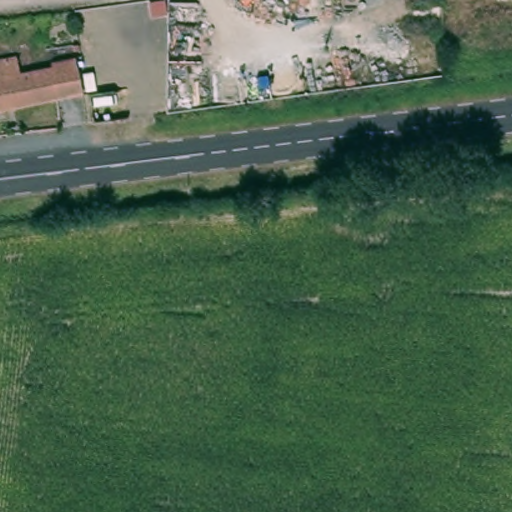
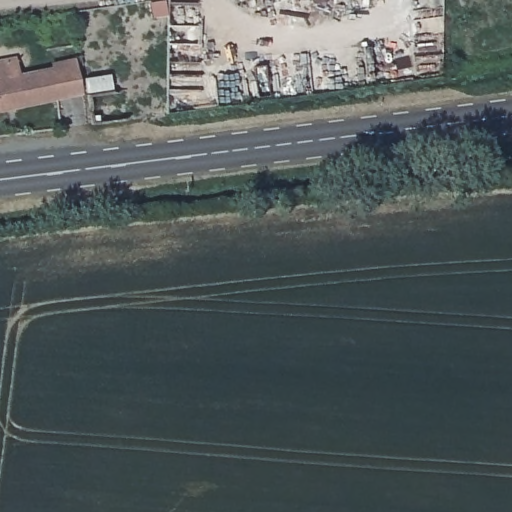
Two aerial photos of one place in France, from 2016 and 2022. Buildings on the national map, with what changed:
unchanged [(25,71),(80,60),(86,93),(0,112),(0,60),(20,56),(25,71)]

